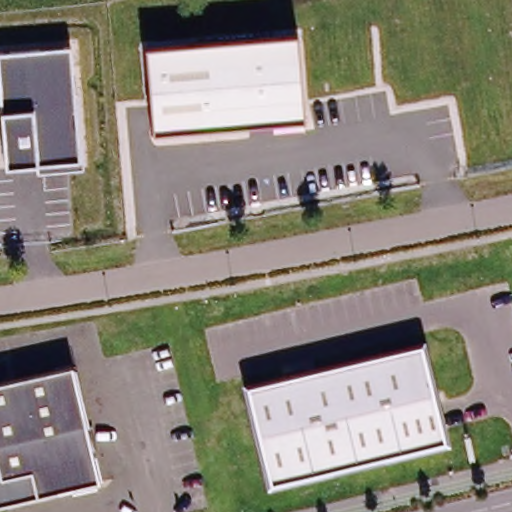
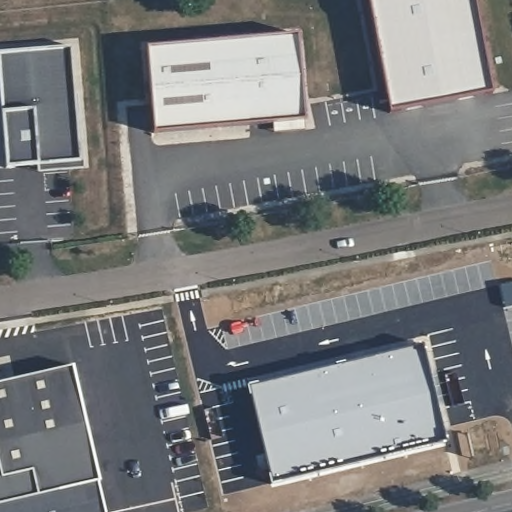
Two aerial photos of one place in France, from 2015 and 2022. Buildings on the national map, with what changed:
new [(390,111),(369,0),(475,0),(492,92),(390,111)]
unchanged [(296,36),(304,120),(157,130),(148,49),(296,36)]
unchanged [(82,169),(37,173),(37,166),(6,169),(0,92),(0,54),(70,48),(82,169)]
unchanged [(435,445),(262,485),(238,389),(413,348),(435,445)]
unchanged [(94,482),(32,498),(26,473),(0,479),(0,383),(66,367),(94,482)]
unchanged [(26,473),(32,498),(0,505),(0,479),(26,473)]
new [(100,512),(0,512),(0,506),(93,483),(100,512)]

